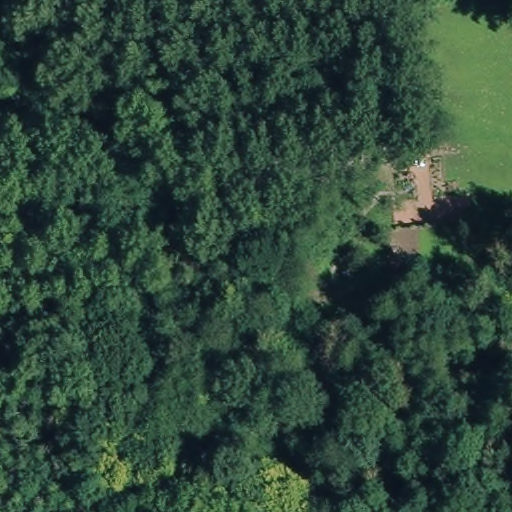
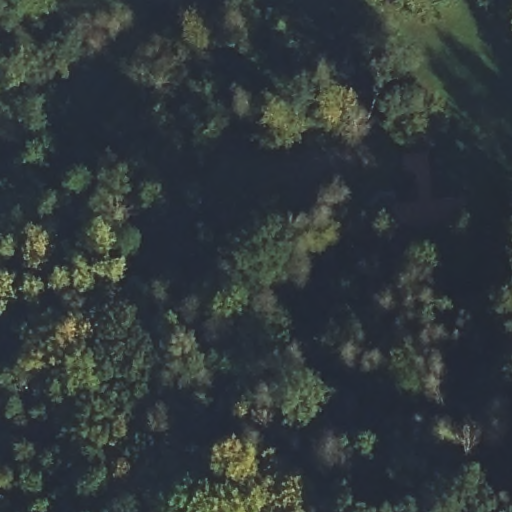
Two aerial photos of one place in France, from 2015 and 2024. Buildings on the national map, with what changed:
unchanged [(475,199),(478,226),(408,234),(405,208),(475,199)]

